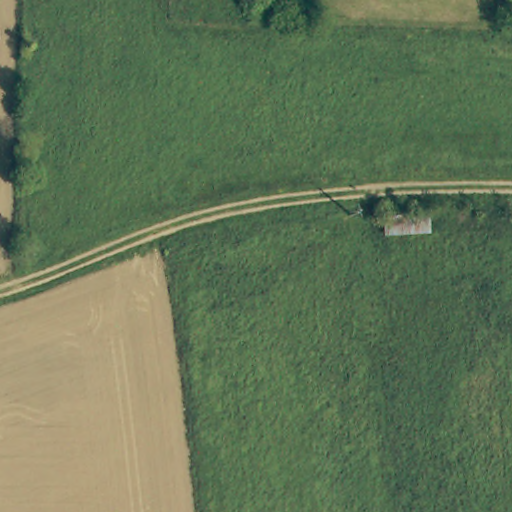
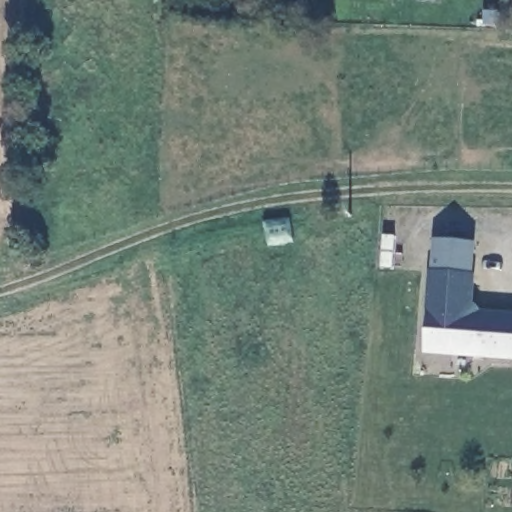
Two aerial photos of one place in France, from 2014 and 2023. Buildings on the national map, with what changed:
new [(429,269),(432,270),(433,238),(475,241),(473,273),(476,274),(473,303),(480,311),(512,313),(512,360),(422,352),(429,269)]

